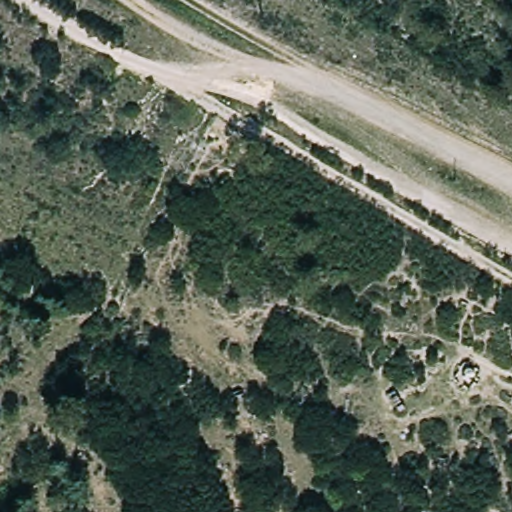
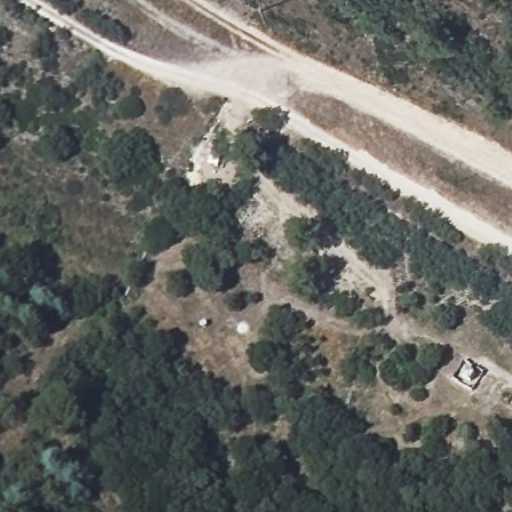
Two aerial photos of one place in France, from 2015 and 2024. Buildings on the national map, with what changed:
[]

